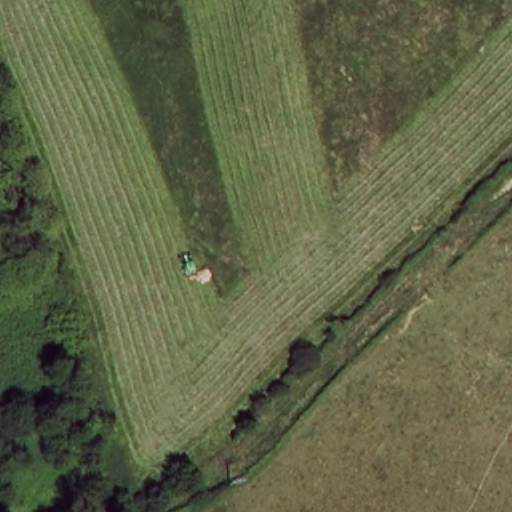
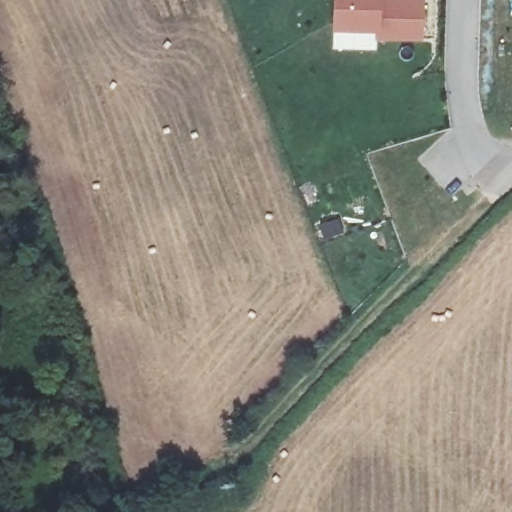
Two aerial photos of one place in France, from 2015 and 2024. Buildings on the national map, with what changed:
new [(375,39),(375,33),(333,31),(334,0),(426,0),(423,39),(375,39)]

